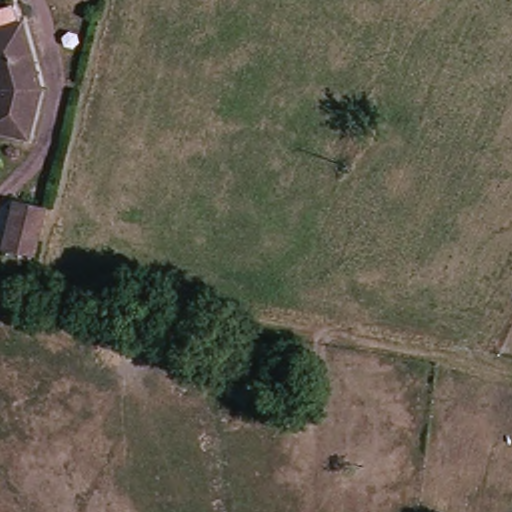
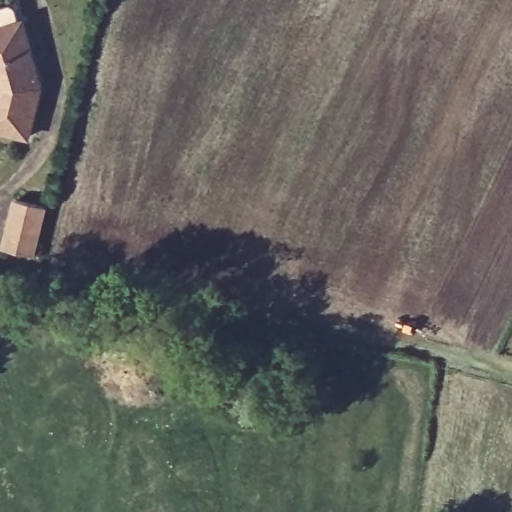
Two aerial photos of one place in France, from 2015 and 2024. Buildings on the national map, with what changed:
unchanged [(0,92),(0,31),(22,23),(45,87),(35,127),(33,135),(0,127),(0,92)]
unchanged [(6,252),(18,205),(48,209),(37,257),(6,252)]

